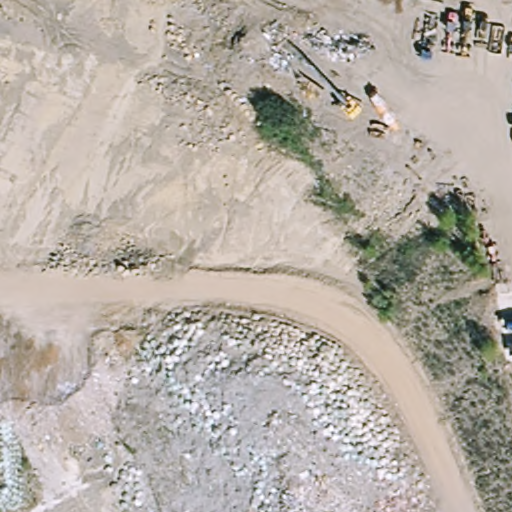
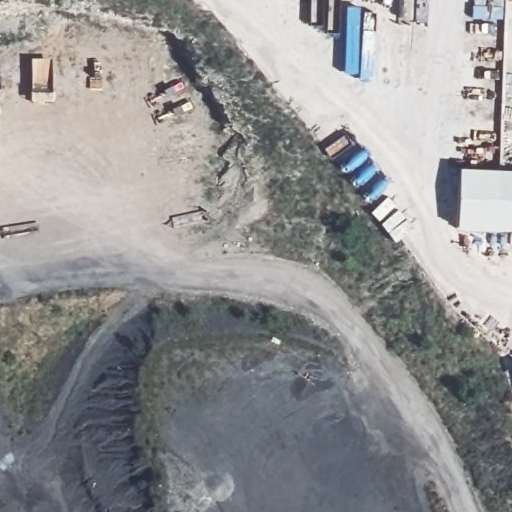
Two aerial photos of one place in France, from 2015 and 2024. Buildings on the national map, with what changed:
new [(512,232),(457,230),(458,170),(512,172),(512,232)]

